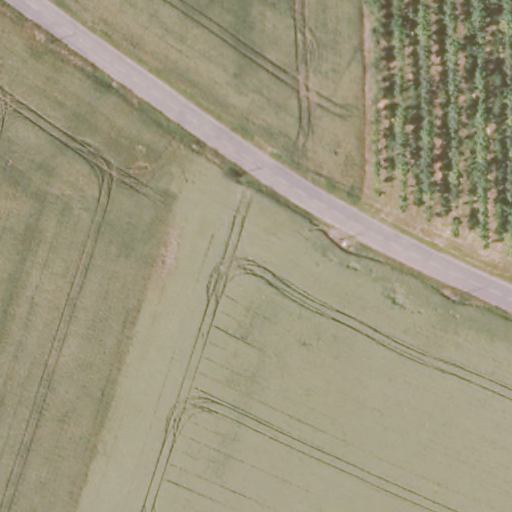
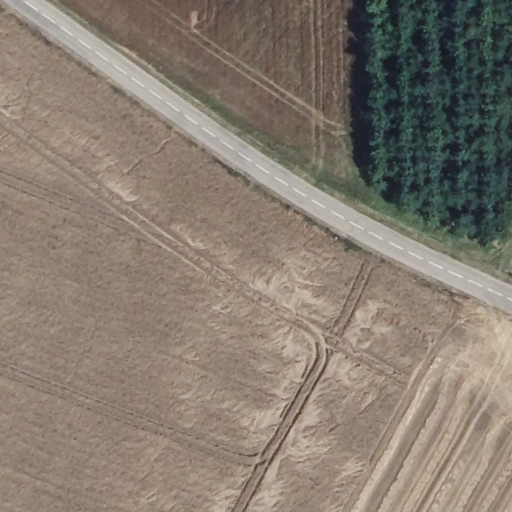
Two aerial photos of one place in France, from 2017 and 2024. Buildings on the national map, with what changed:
[]

